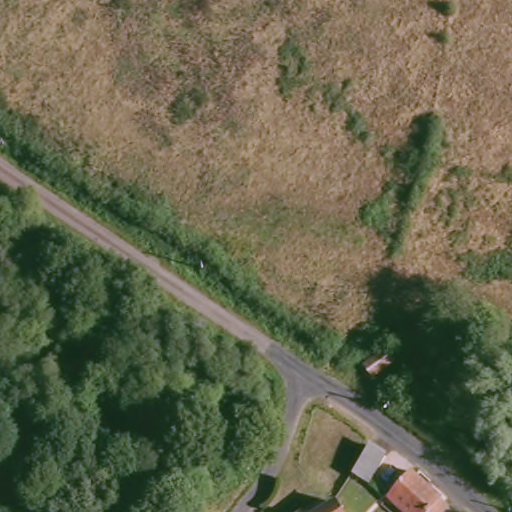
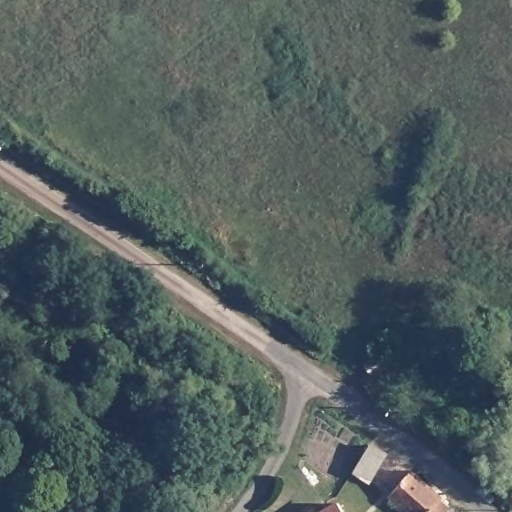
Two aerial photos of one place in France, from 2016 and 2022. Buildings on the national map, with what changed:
unchanged [(359,365),(377,343),(389,354),(372,374),(359,365)]
unchanged [(367,446),(384,456),(370,479),(352,469),(367,446)]
unchanged [(440,512),(402,512),(384,497),(410,465),(448,504),(440,512)]

